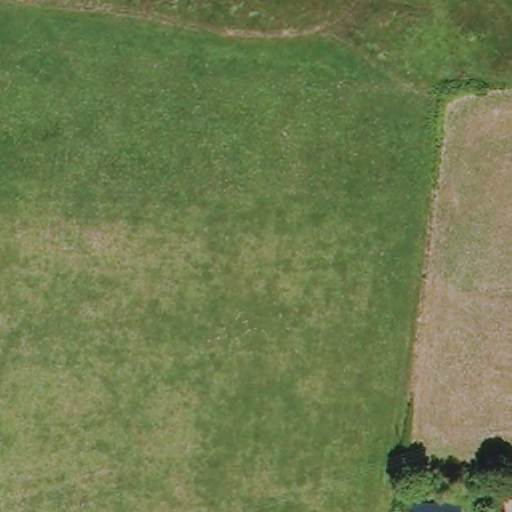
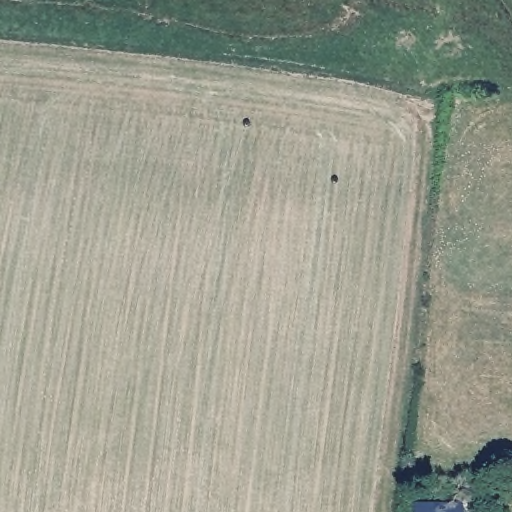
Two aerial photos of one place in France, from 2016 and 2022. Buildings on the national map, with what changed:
unchanged [(462,502),(462,512),(404,512),(404,498),(462,502)]

